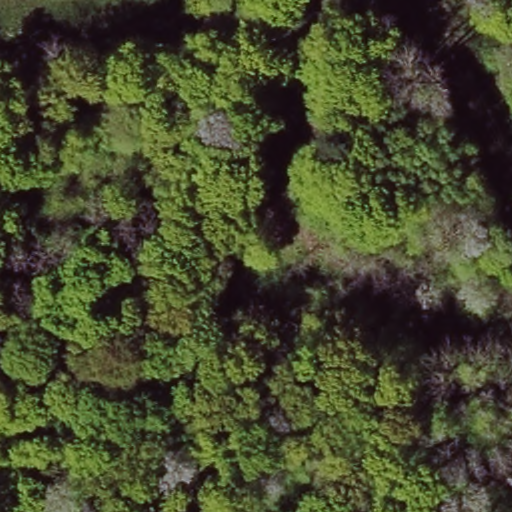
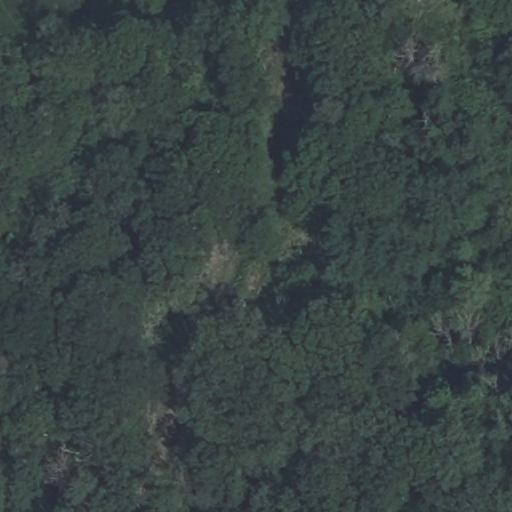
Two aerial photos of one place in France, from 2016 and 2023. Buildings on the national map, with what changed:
unchanged [(140,291),(130,297),(117,274),(127,269),(140,291)]
unchanged [(0,374),(4,380),(0,383),(0,374)]

